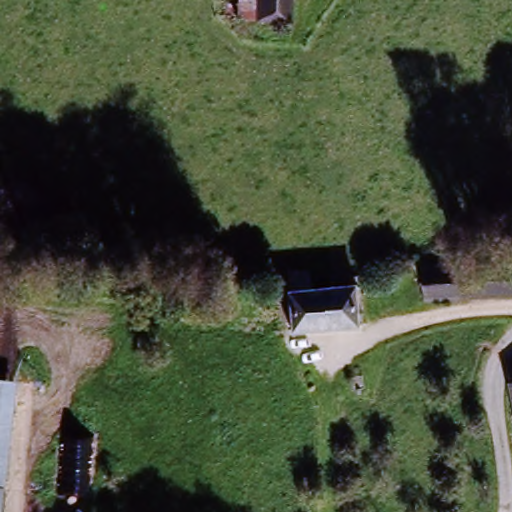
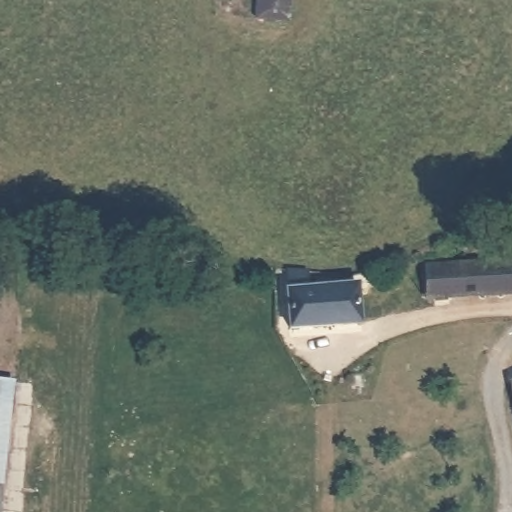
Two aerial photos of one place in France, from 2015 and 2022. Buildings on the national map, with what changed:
unchanged [(241,15),(242,0),(262,0),(261,15),(241,15)]
unchanged [(261,15),(262,0),(291,0),(291,15),(261,15)]
unchanged [(512,268),(512,292),(433,296),(432,272),(512,268)]
unchanged [(309,290),(356,290),(358,326),(288,330),(290,275),(310,276),(309,290)]
unchanged [(506,372),(512,371),(512,397),(506,372)]
unchanged [(0,379),(15,380),(6,481),(3,512),(0,512),(0,481),(0,379)]

